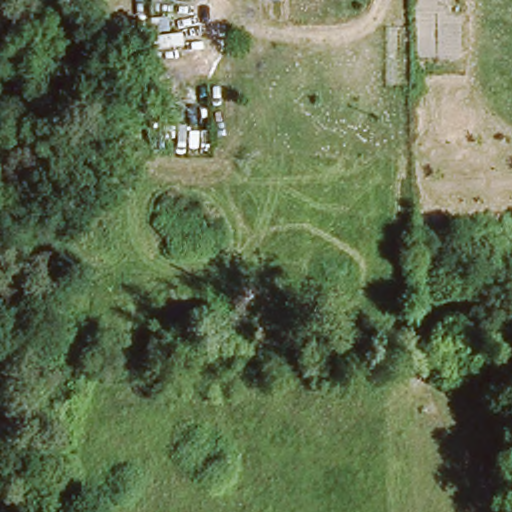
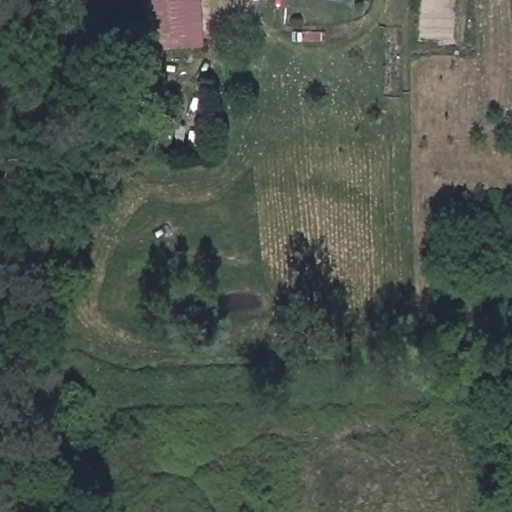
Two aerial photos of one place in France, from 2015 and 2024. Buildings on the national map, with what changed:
new [(202,0),(205,47),(146,50),(143,0),(202,0)]

